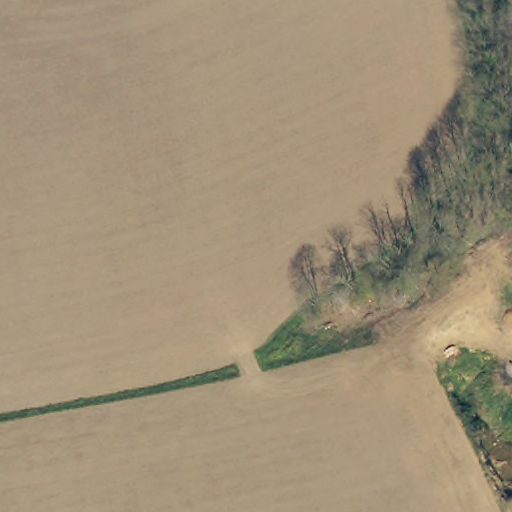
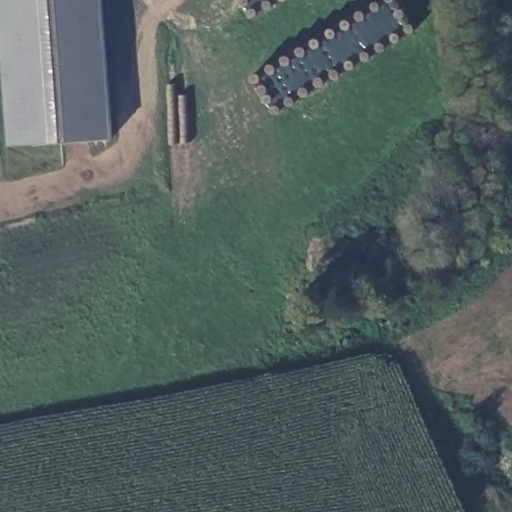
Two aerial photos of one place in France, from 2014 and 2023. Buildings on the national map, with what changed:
new [(111,139),(11,145),(0,3),(0,0),(102,0),(111,139)]

